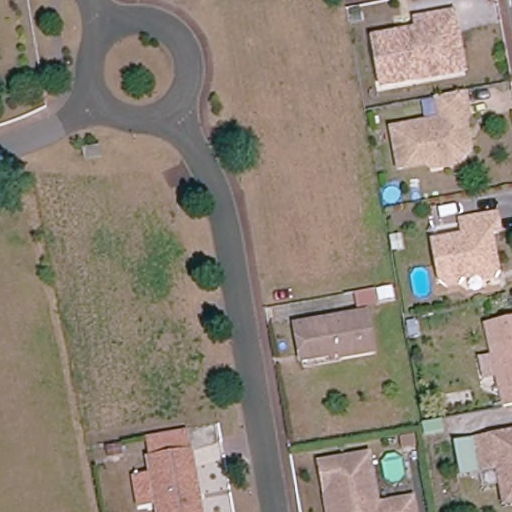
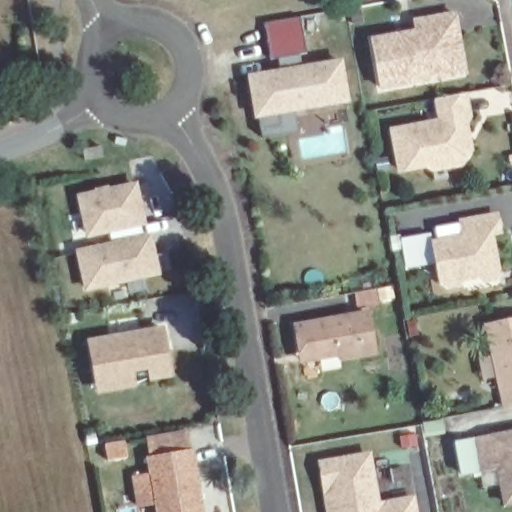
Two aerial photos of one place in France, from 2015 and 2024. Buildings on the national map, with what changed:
new [(271,59),(264,23),(300,16),(306,51),(271,59)]
unchanged [(416,85),(380,92),(371,43),(415,34),(413,25),(453,16),(457,34),(465,76),(416,85)]
new [(349,103),(255,116),(249,75),(340,59),(349,103)]
unchanged [(432,174),(401,180),(392,134),(441,124),(437,101),(464,96),(469,125),(464,126),(471,160),(462,173),(448,176),(433,179),(432,174)]
unchanged [(100,145),(101,156),(81,158),(80,147),(100,145)]
new [(110,242),(109,232),(87,237),(77,194),(137,181),(147,223),(141,225),(144,235),(151,233),(160,273),(85,292),(76,251),(110,242)]
unchanged [(483,283),(477,279),(464,282),(460,287),(447,290),(442,286),(434,246),(465,240),(462,225),(496,218),(500,234),(491,236),(498,275),(499,280),(483,283)]
unchanged [(297,355),(292,326),(362,312),(370,351),(337,357),(337,354),(313,359),(299,362),(297,355)]
unchanged [(497,390),(484,326),(512,320),(512,407),(500,409),(497,390)]
new [(121,385),(101,389),(92,340),(165,327),(173,372),(154,375),(152,365),(133,368),(136,383),(121,385)]
unchanged [(146,460),(143,440),(158,437),(184,432),(188,452),(198,512),(155,512),(146,460)]
unchanged [(460,476),(454,446),(512,435),(512,504),(505,505),(501,486),(483,490),(479,473),(460,476)]
unchanged [(323,492),(319,468),(367,459),(376,509),(411,502),(413,512),(327,512),(323,492)]

